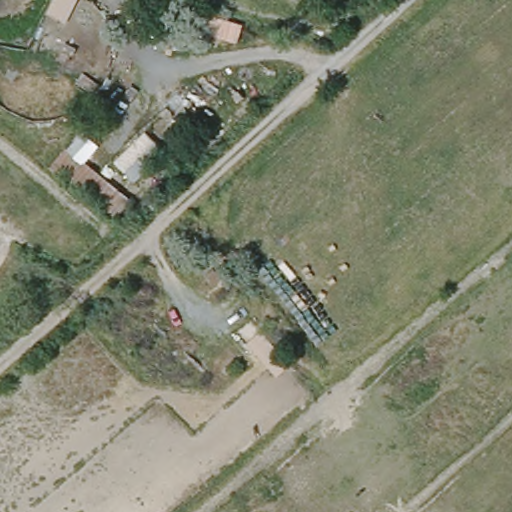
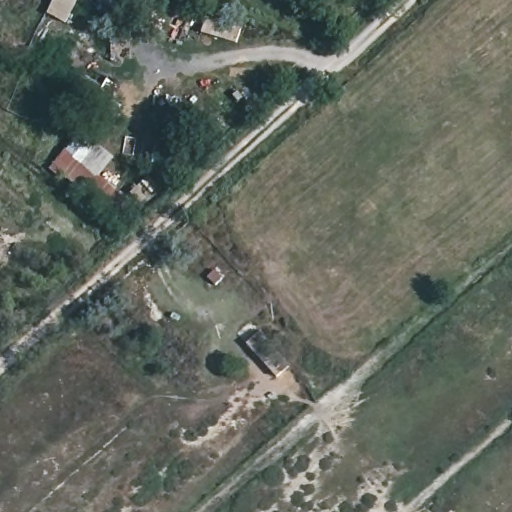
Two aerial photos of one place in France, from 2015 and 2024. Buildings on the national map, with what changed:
unchanged [(79,141),(96,156),(89,164),(132,201),(117,218),(57,166),(79,141)]
unchanged [(291,365),(278,378),(247,345),(260,333),(291,365)]

